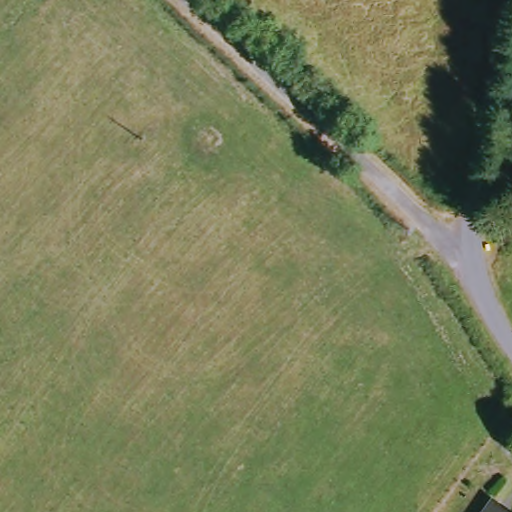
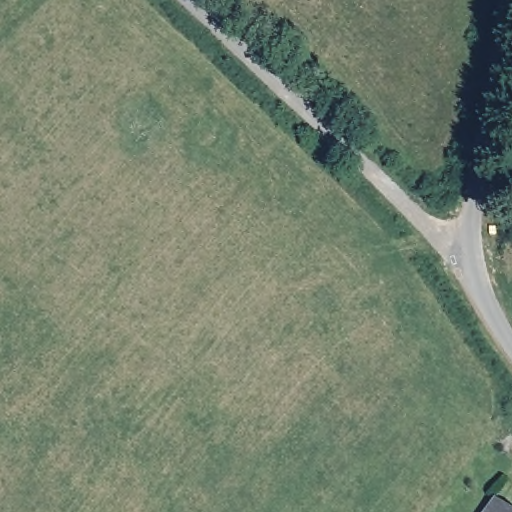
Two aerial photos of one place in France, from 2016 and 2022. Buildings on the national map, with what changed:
unchanged [(512,510),(512,512),(501,512),(506,505),(512,510)]

